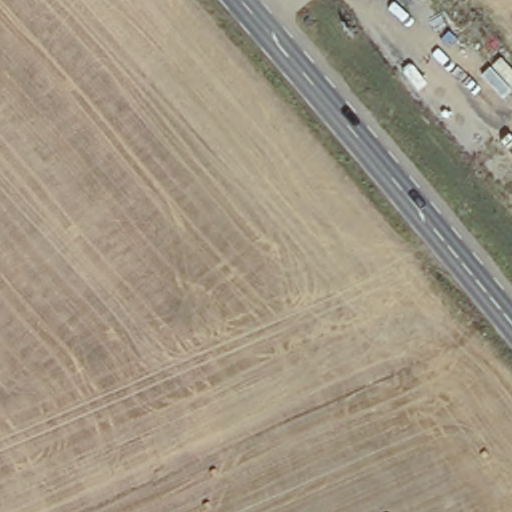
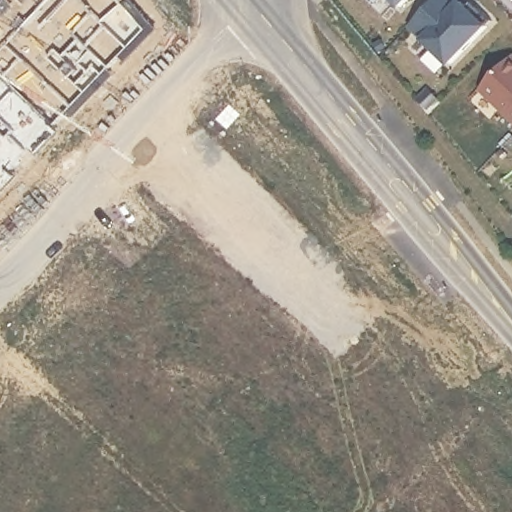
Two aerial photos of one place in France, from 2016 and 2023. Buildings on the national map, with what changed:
new [(0,192),(0,45),(20,25),(0,4),(0,0),(119,0),(147,32),(0,192)]
new [(388,0),(408,0),(398,10),(388,0)]
new [(450,0),(457,7),(459,5),(470,16),(475,11),(489,24),(448,67),(408,29),(436,0),(450,0)]
new [(471,7),(475,11),(470,16),(466,12),(471,7)]
new [(480,91),(512,57),(512,122),(480,91)]

